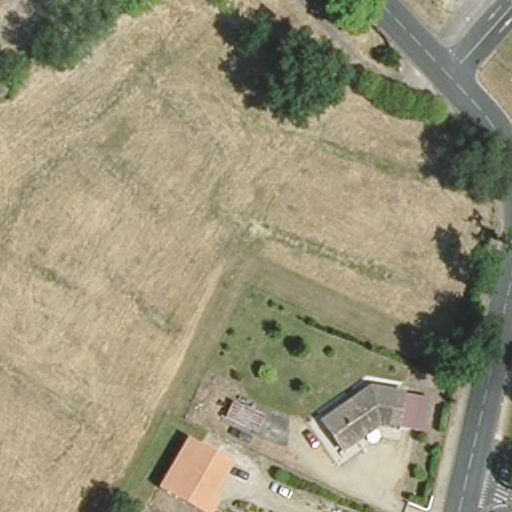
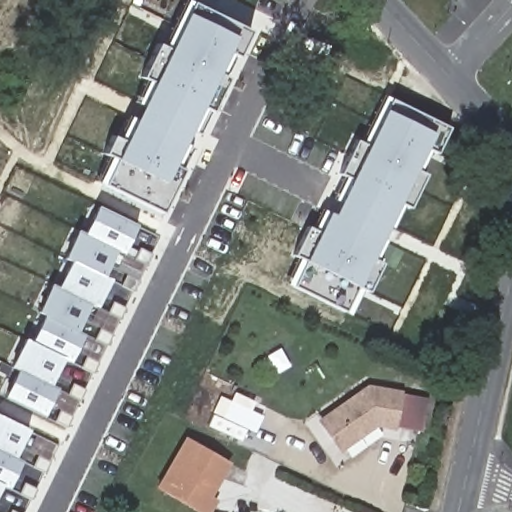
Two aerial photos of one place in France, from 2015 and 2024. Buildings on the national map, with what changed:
new [(173,184),(160,211),(103,184),(186,13),(193,2),(200,7),(248,31),(240,46),(237,55),(228,50),(232,42),(164,180),(172,165),(180,170),(173,184)]
new [(153,82),(141,77),(158,42),(169,49),(153,82)]
new [(217,72),(226,77),(211,110),(201,105),(217,72)]
new [(385,109),(390,97),(448,127),(436,151),(427,147),(434,132),(385,109)]
new [(382,107),(434,132),(346,310),(295,285),(382,107)]
new [(116,158),(104,153),(113,135),(124,141),(116,158)]
new [(348,176),(341,173),(356,140),(364,144),(348,176)]
new [(416,169),(426,174),(410,206),(400,201),(416,169)]
new [(3,396),(17,370),(10,366),(25,337),(31,340),(44,315),(37,311),(50,282),(57,286),(71,260),(64,257),(76,229),(84,233),(97,205),(137,224),(123,254),(116,250),(104,275),(111,279),(97,308),(90,305),(77,331),(84,333),(70,362),(63,359),(51,385),(57,388),(44,415),(3,396)]
new [(307,260),(294,254),(308,225),(321,232),(307,260)]
new [(372,257),(382,262),(368,290),(358,286),(372,257)]
unchanged [(341,444),(321,415),(368,382),(400,387),(394,422),(376,420),(341,444)]
new [(241,440),(207,425),(221,396),(231,401),(235,392),(255,402),(252,410),(263,416),(255,433),(246,430),(241,440)]
new [(29,430),(15,456),(22,460),(8,487),(2,485),(0,488),(0,414),(29,430)]
unchanged [(218,457),(234,464),(213,510),(199,503),(194,501),(182,495),(169,490),(190,444),(203,450),(217,456),(218,457)]
demolished [(166,510),(165,512),(146,512),(150,503),(166,510)]

